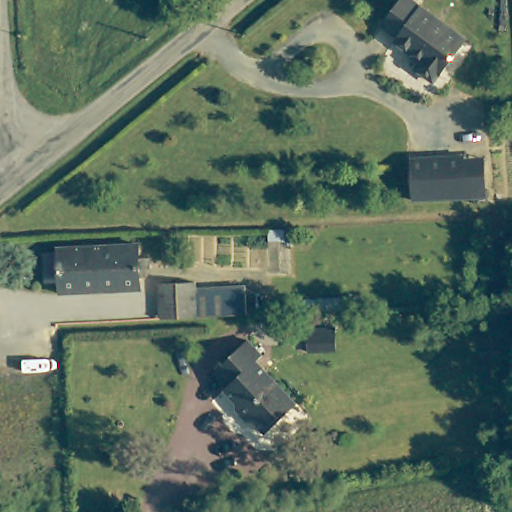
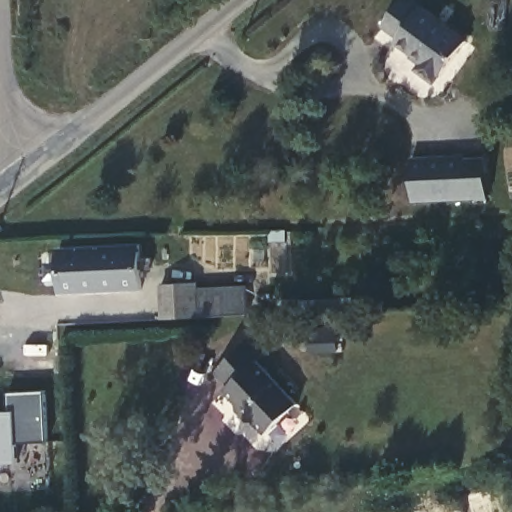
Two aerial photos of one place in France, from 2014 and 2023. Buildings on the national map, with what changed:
unchanged [(463,39),(432,82),(414,69),(420,60),(393,41),(395,38),(380,25),(397,0),(407,0),(463,39)]
unchanged [(410,163),(442,162),(443,165),(464,164),(484,163),(486,201),(466,202),(411,204),(410,163)]
unchanged [(123,291),(123,286),(71,288),(71,292),(64,293),(63,249),(141,247),(143,290),(123,291)]
unchanged [(196,288),(197,314),(161,316),(160,283),(196,281),(196,288)]
unchanged [(196,288),(246,286),(247,312),(229,313),(197,314),(196,288)]
unchanged [(249,418),(236,405),(236,396),(227,386),(228,382),(214,367),(247,336),(261,348),(254,355),(296,400),(268,427),(260,419),(249,418)]
new [(16,443),(18,462),(0,463),(0,412),(10,411),(10,394),(46,392),(49,442),(16,443)]

